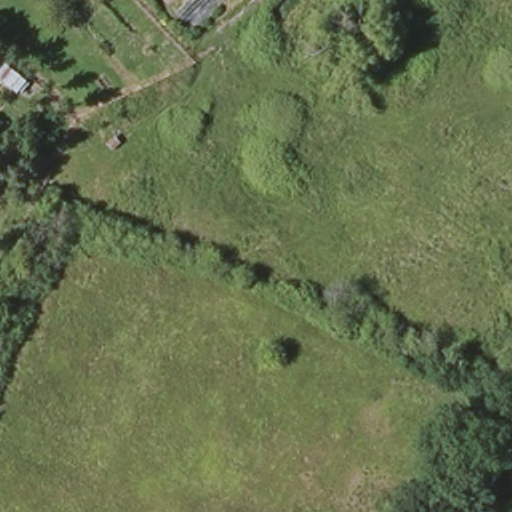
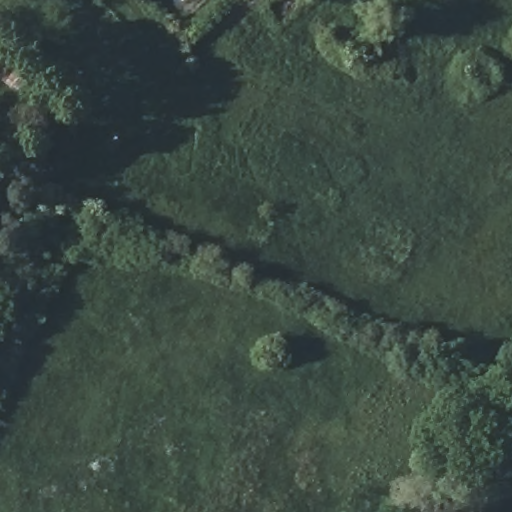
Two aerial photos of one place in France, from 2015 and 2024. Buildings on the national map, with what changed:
unchanged [(21,94),(7,82),(1,89),(0,87),(0,56),(1,55),(31,81),(21,94)]

